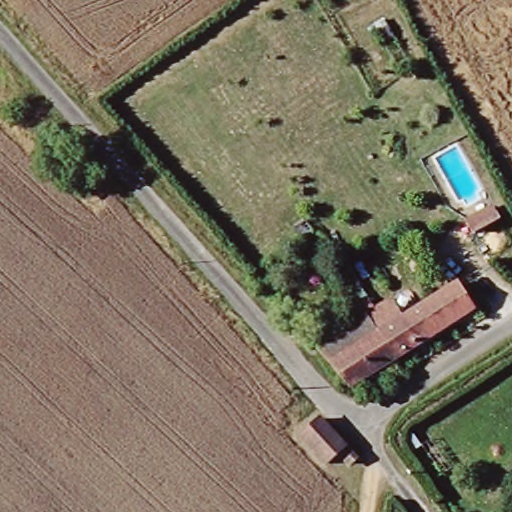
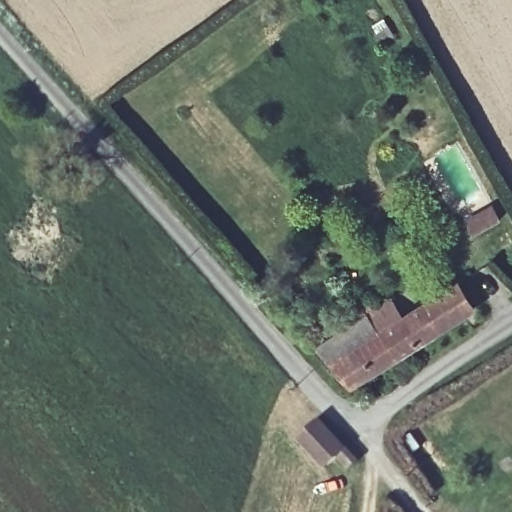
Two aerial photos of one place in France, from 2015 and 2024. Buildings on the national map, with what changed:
unchanged [(407,255),(419,275),(405,283),(393,263),(407,255)]
unchanged [(433,330),(397,353),(367,308),(388,295),(401,314),(458,278),(475,305),(433,330)]
unchanged [(367,308),(397,353),(352,385),(319,349),(315,342),(367,308)]
unchanged [(323,462),(297,432),(320,415),(352,457),(345,462),(337,451),(323,462)]

